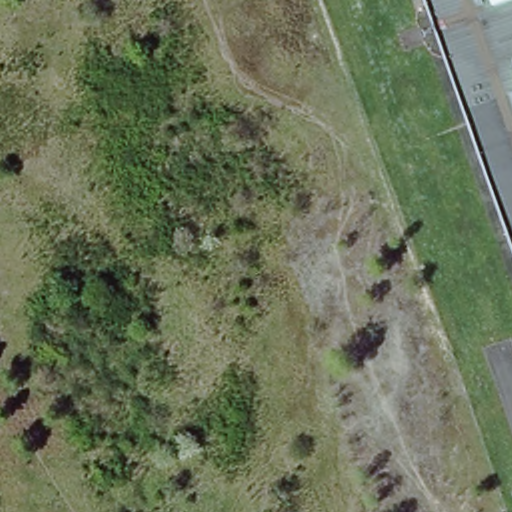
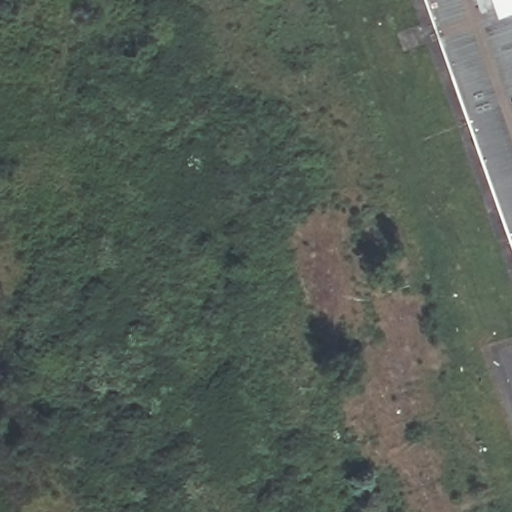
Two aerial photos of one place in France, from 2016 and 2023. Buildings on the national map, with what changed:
unchanged [(429,0),(512,0),(512,23),(445,41),(429,0)]
unchanged [(445,41),(512,23),(512,240),(445,41)]

